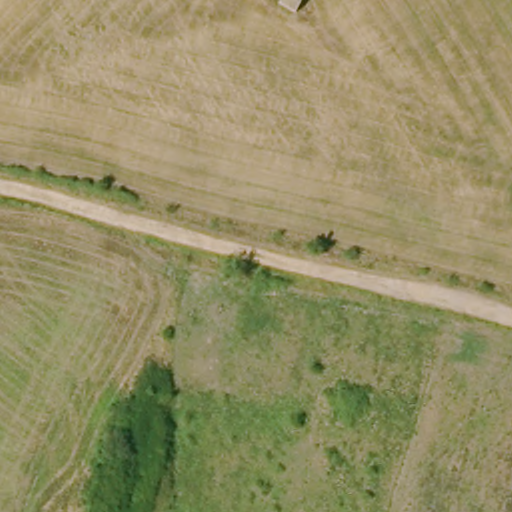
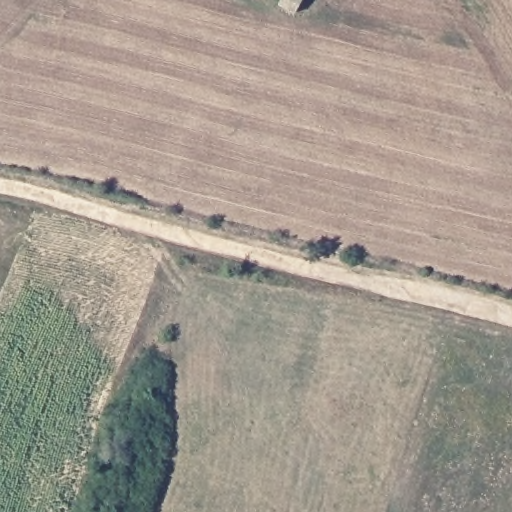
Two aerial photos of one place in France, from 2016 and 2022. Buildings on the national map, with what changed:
unchanged [(263,2),(265,0),(286,0),(277,12),(263,2)]

